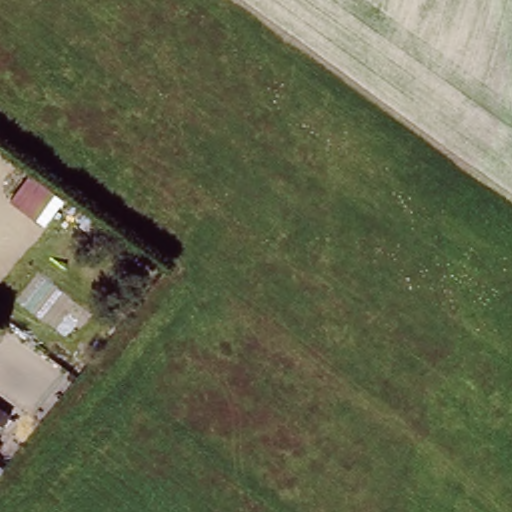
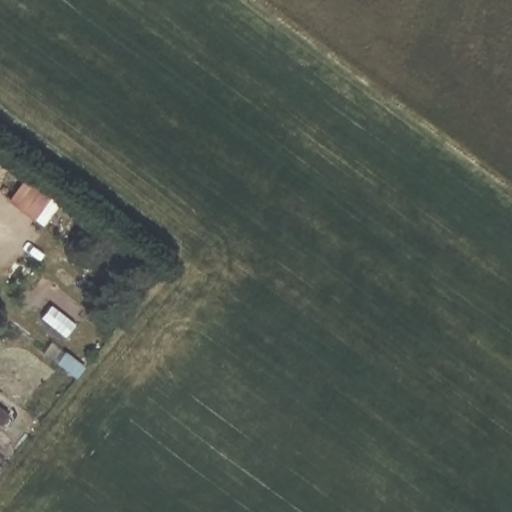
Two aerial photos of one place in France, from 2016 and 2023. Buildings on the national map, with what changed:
unchanged [(29,173),(64,200),(44,228),(8,201),(29,173)]
unchanged [(2,409),(0,412),(0,407),(2,409)]

